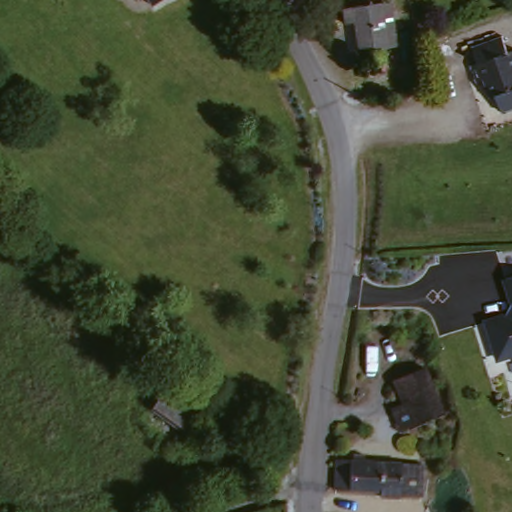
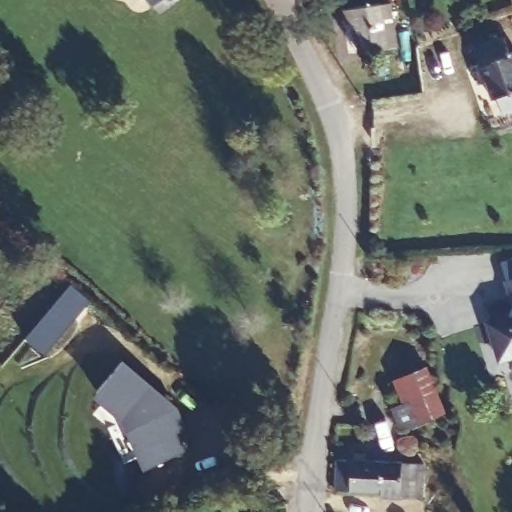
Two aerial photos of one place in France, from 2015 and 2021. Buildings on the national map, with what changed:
unchanged [(131,6),(127,0),(174,0),(147,19),(136,3),(131,6)]
unchanged [(389,53),(362,56),(356,21),(384,14),(389,53)]
unchanged [(512,57),(512,114),(508,105),(496,109),(491,95),(481,99),(472,76),(481,72),(472,52),(504,39),(510,57),(512,57)]
unchanged [(512,280),(512,304),(505,282),(512,280)]
new [(72,284),(91,299),(44,353),(26,336),(72,284)]
unchanged [(487,325),(512,317),(512,358),(499,362),(487,325)]
new [(126,415),(97,391),(121,359),(174,405),(184,428),(176,432),(184,450),(148,465),(126,415)]
unchanged [(440,411),(406,425),(409,429),(398,433),(389,411),(399,407),(392,386),(424,374),(440,411)]
demolished [(194,417),(181,431),(152,405),(164,391),(194,417)]
unchanged [(426,472),(423,495),(406,495),(404,506),(379,504),(378,497),(340,493),(343,463),(426,472)]

